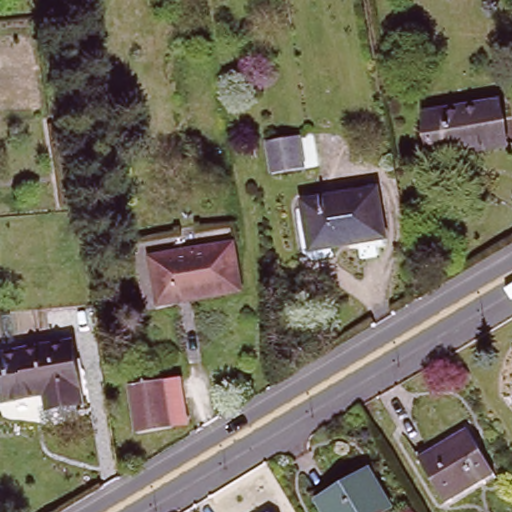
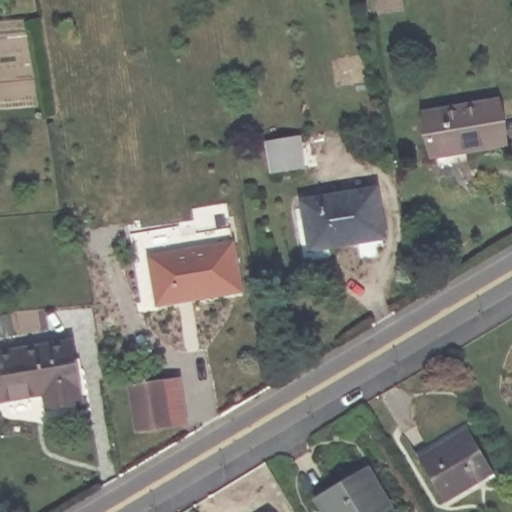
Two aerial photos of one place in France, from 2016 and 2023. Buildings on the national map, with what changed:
unchanged [(504,144),(464,151),(463,147),(430,152),(423,113),(497,100),(504,144)]
unchanged [(297,137),(302,168),(271,172),(267,142),(297,137)]
unchanged [(377,189),(385,237),(308,250),(300,201),(377,189)]
unchanged [(232,242),(240,290),(158,305),(150,257),(232,242)]
unchanged [(70,340),(80,402),(46,408),(43,393),(0,400),(0,353),(70,340)]
unchanged [(130,385),(162,378),(178,376),(185,423),(170,426),(137,432),(130,385)]
unchanged [(467,427),(492,471),(443,501),(417,457),(467,427)]
unchanged [(372,467),(395,505),(384,512),(329,512),(320,497),(372,467)]

